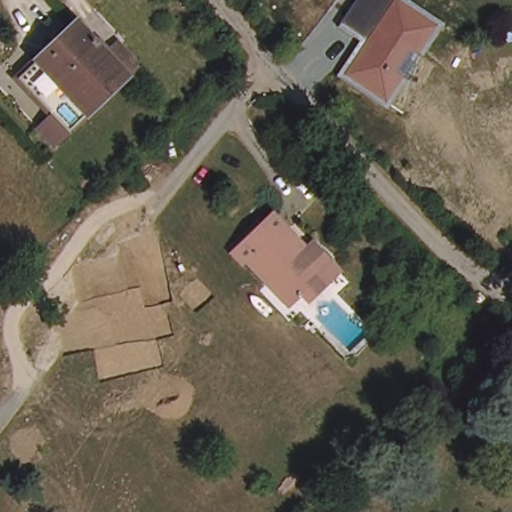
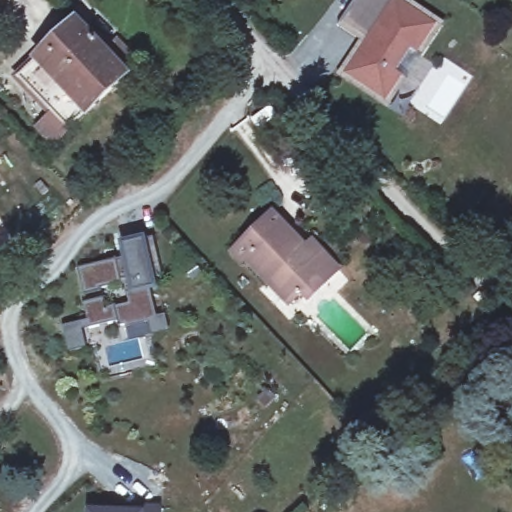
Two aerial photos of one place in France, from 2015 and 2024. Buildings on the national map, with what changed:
unchanged [(260,0),(262,3),(255,9),(247,1),(249,0),(260,0)]
unchanged [(338,75),(361,41),(338,27),(357,0),(406,0),(442,24),(387,108),(338,75)]
unchanged [(44,133),(58,119),(25,83),(82,29),(111,59),(123,47),(144,69),(75,135),(60,149),(44,133)]
unchanged [(303,293),(290,304),(247,259),(244,262),(233,251),(237,248),(273,214),(305,249),(312,242),(319,249),(333,264),(340,272),(310,300),(303,293)]
new [(0,236),(0,230),(2,234),(0,236)]
new [(78,269),(115,260),(122,257),(119,242),(145,237),(146,240),(153,238),(161,275),(155,277),(158,290),(151,292),(156,317),(165,315),(168,332),(130,340),(127,324),(120,325),(118,322),(83,330),(86,347),(68,352),(62,327),(87,320),(84,304),(105,299),(106,308),(115,307),(128,304),(126,291),(130,289),(128,283),(120,284),(100,289),(100,292),(84,295),(78,269)]
new [(87,508),(145,509),(145,504),(162,505),(162,512),(87,512),(87,508)]

